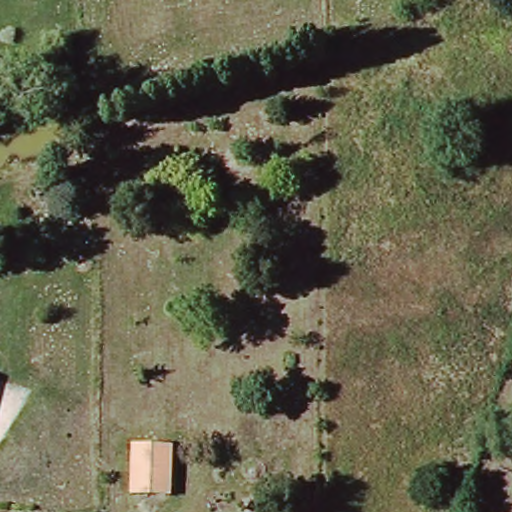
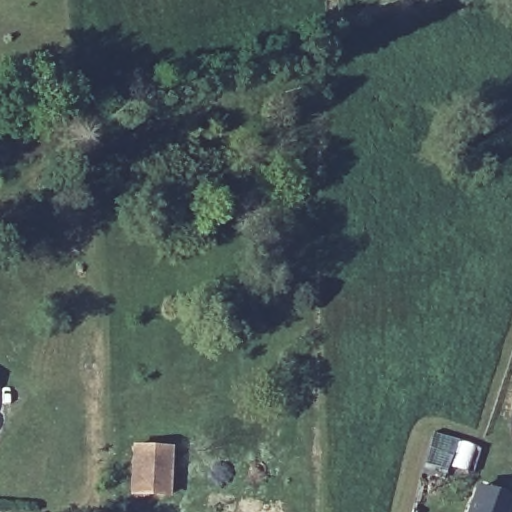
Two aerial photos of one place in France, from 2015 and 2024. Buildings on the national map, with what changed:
unchanged [(129,445),(165,445),(165,490),(129,490),(129,445)]
new [(483,495),(486,485),(512,495),(512,512),(477,512),(483,495)]

